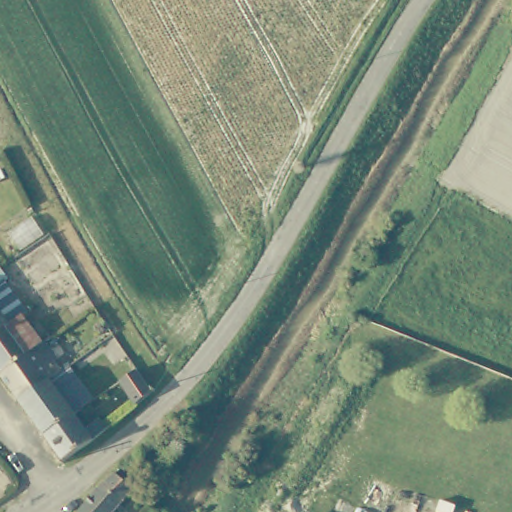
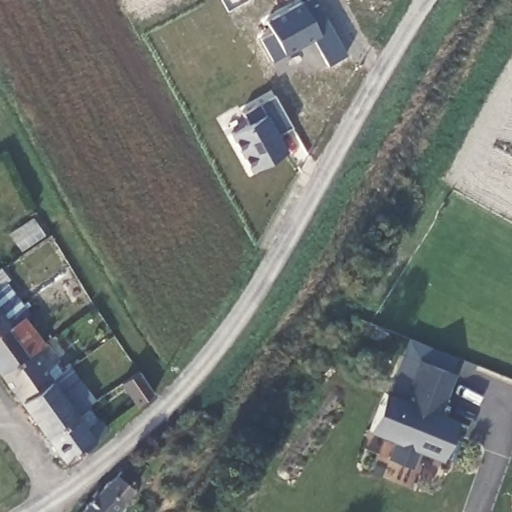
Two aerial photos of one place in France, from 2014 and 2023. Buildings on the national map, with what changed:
new [(265,21),(300,0),(301,0),(308,0),(311,6),(316,3),(344,54),(326,64),(311,38),(271,60),(258,38),(270,32),(265,21)]
new [(246,123),(240,112),(272,93),(290,126),(275,134),(285,150),(260,164),(259,161),(249,167),(229,133),(246,123)]
unchanged [(9,291),(32,321),(27,325),(49,352),(5,384),(0,378),(0,279),(3,277),(12,289),(9,291)]
new [(454,372),(438,411),(458,419),(442,460),(417,450),(411,467),(388,456),(393,441),(368,430),(385,390),(410,336),(457,356),(454,372)]
unchanged [(5,384),(49,352),(62,369),(50,379),(56,387),(24,411),(5,384)]
unchanged [(136,404),(120,382),(137,371),(152,392),(136,404)]
unchanged [(24,411),(56,387),(60,391),(77,377),(99,408),(79,422),(48,444),(24,411)]
unchanged [(67,471),(48,444),(79,422),(99,450),(67,471)]
unchanged [(139,489),(118,512),(84,512),(120,473),(139,489)]

